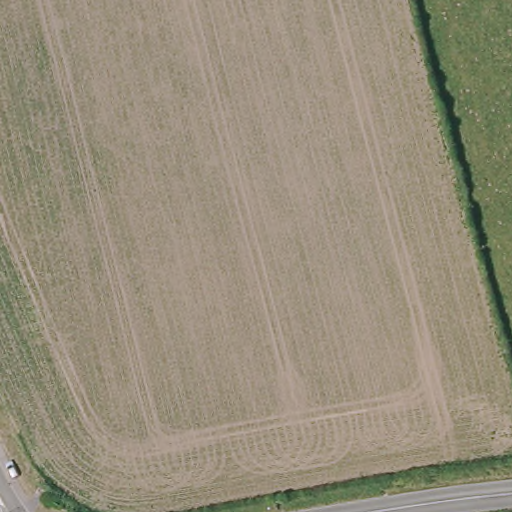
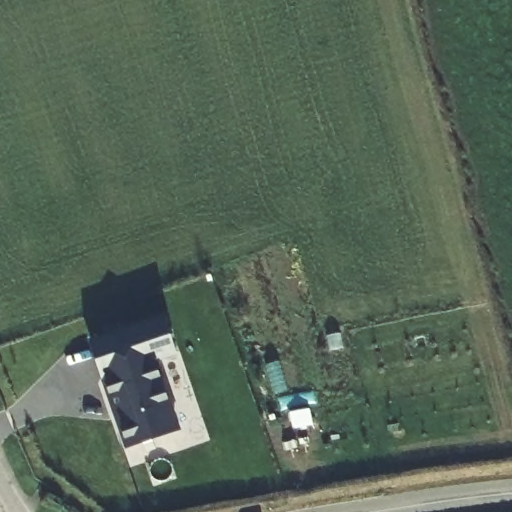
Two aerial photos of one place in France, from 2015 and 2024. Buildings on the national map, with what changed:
new [(86,342),(163,315),(176,353),(156,361),(180,430),(123,450),(86,342)]

